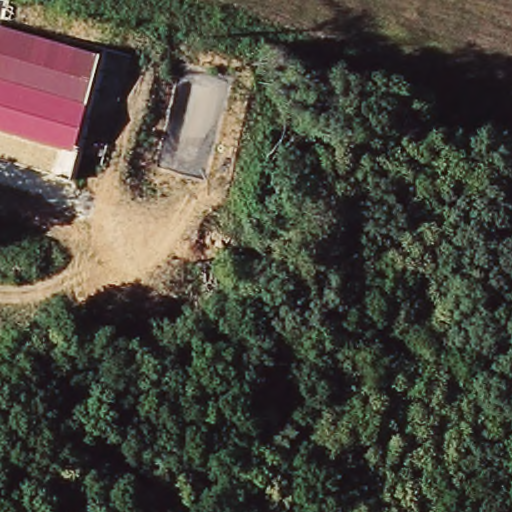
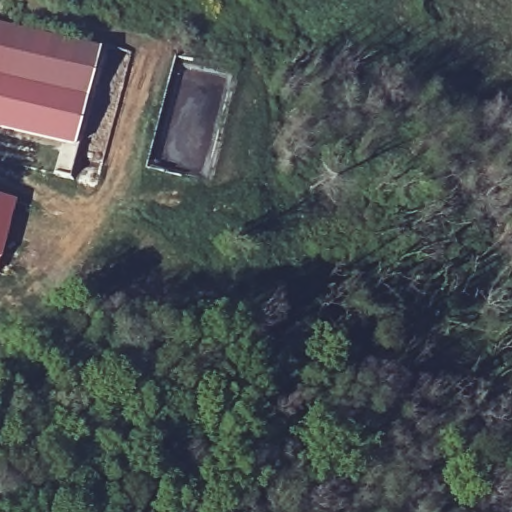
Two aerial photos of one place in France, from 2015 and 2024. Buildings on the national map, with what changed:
unchanged [(74,147),(0,129),(0,23),(100,49),(74,147)]
new [(16,198),(0,257),(0,195),(16,198)]

